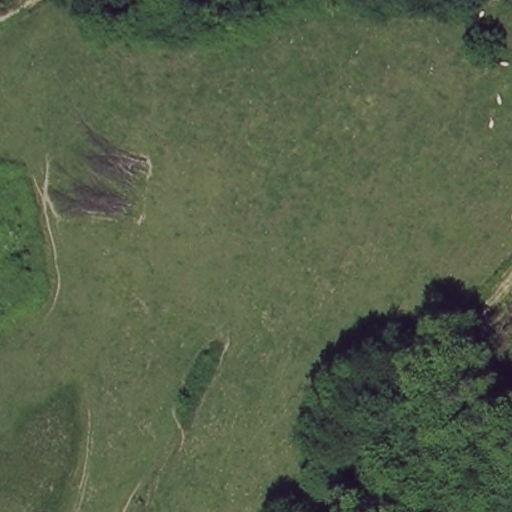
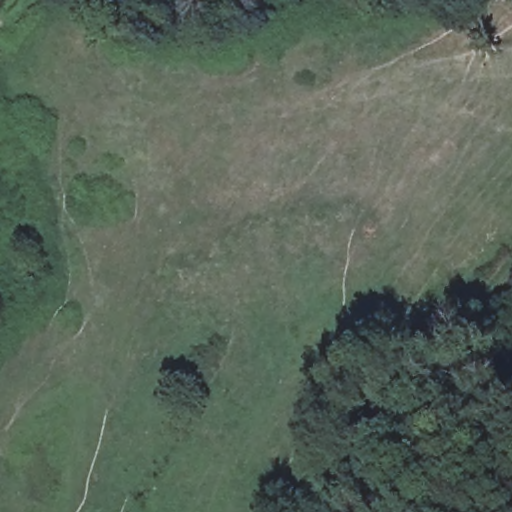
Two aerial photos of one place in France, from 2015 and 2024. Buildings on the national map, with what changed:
[]

